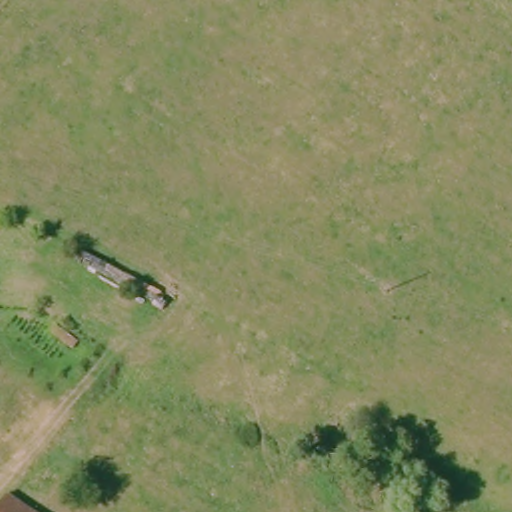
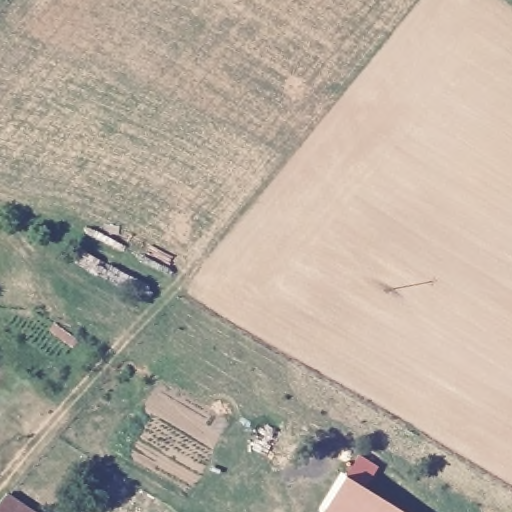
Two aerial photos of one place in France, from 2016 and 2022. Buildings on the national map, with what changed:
new [(399,512),(323,512),(323,511),(344,478),(399,512)]
unchanged [(3,512),(13,500),(29,512),(3,512)]

